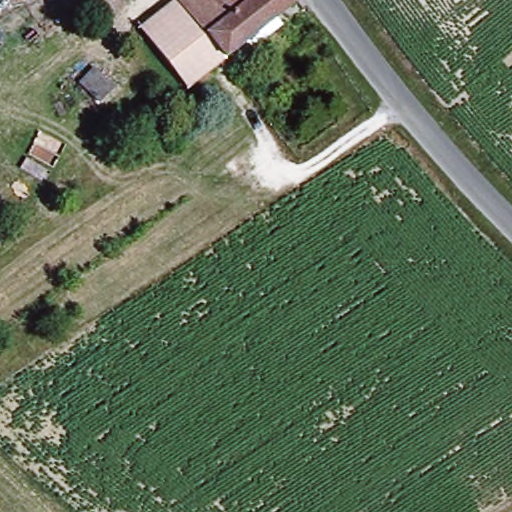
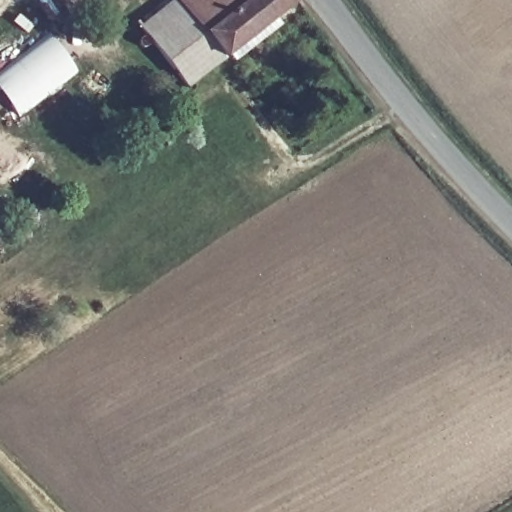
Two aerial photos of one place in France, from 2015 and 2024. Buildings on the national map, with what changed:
unchanged [(267,13),(271,21),(224,58),(218,51),(214,54),(217,58),(210,63),(207,60),(176,84),(126,18),(150,0),(284,0),(267,13)]
new [(15,112),(0,92),(0,76),(52,39),(57,46),(74,67),(15,112)]

